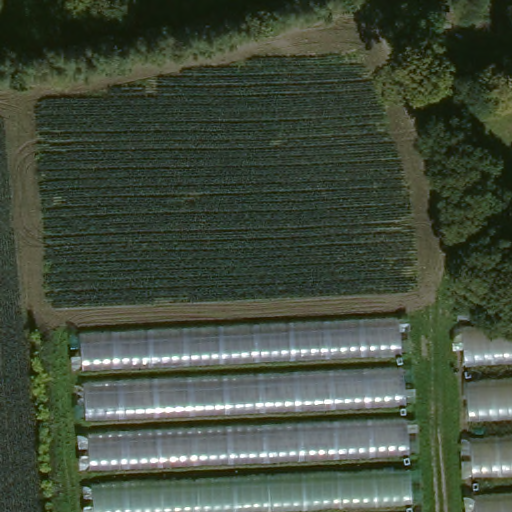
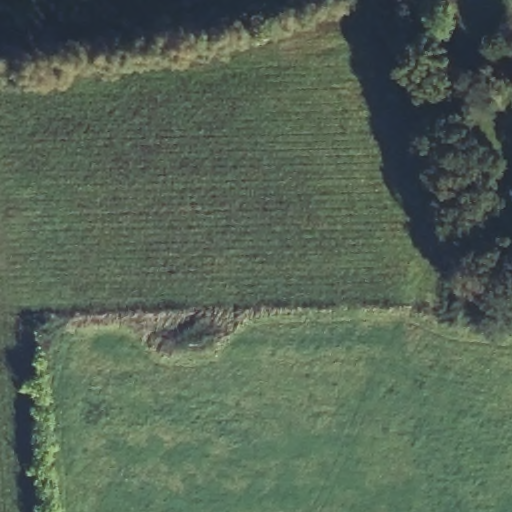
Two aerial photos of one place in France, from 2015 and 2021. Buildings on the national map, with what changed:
demolished [(412,312),(415,350),(85,365),(82,330),(412,312)]
demolished [(419,369),(421,404),(90,417),(90,382),(419,369)]
demolished [(418,452),(93,465),(89,431),(416,417),(418,452)]
demolished [(181,512),(99,512),(96,483),(417,465),(418,499),(181,512)]

